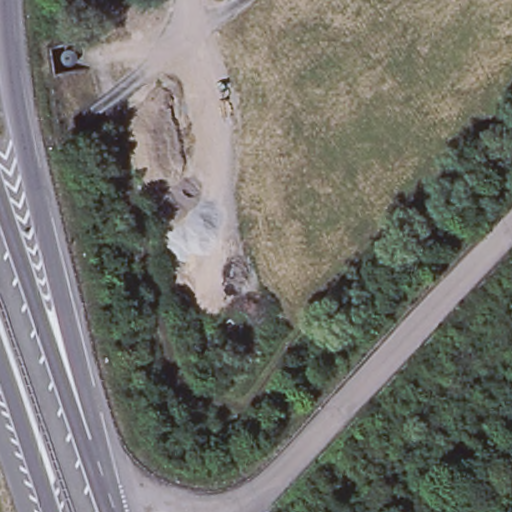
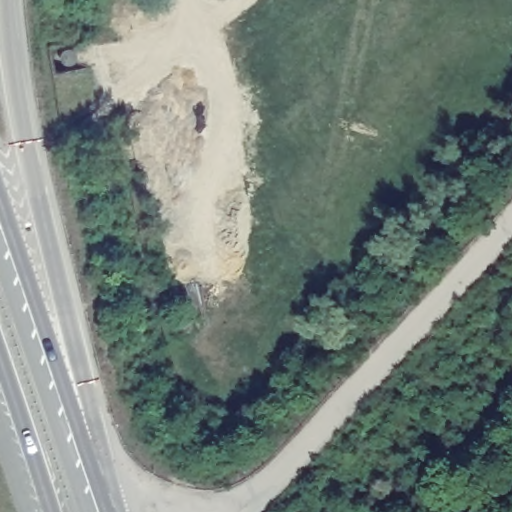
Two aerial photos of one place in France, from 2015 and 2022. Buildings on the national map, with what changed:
[]

